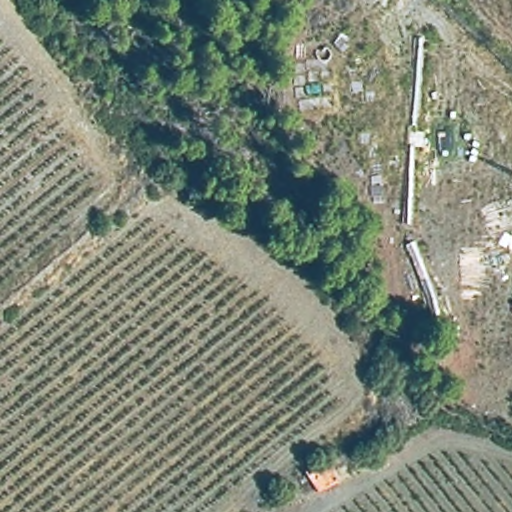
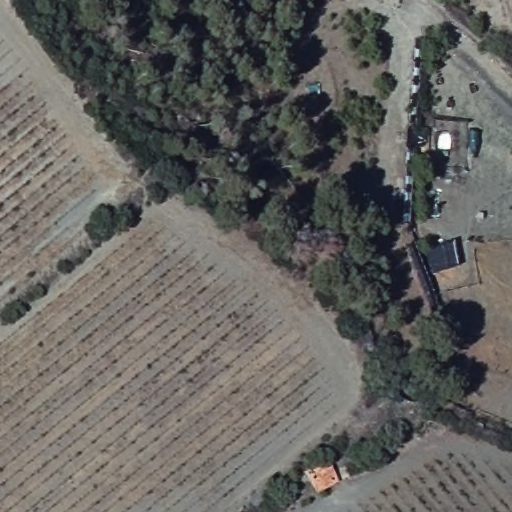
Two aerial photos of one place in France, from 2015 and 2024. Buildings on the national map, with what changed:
unchanged [(307,466),(327,451),(345,474),(318,487),(307,466)]

